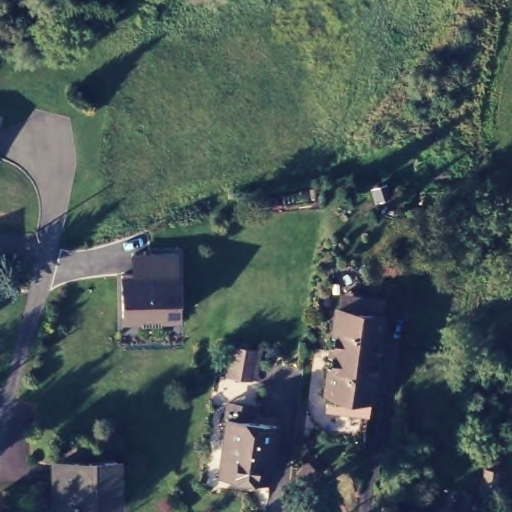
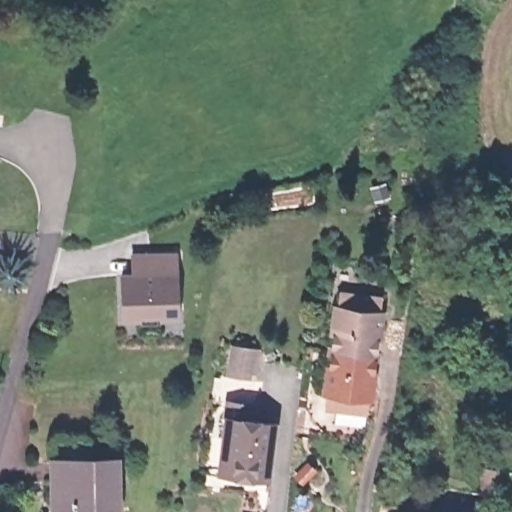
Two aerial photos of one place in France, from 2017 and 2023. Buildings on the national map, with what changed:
unchanged [(117,271),(128,271),(127,253),(175,254),(177,322),(117,321),(117,271)]
unchanged [(333,345),(337,301),(340,288),(351,290),(381,295),(381,301),(375,350),(333,345)]
unchanged [(231,376),(236,344),(261,348),(256,380),(231,376)]
unchanged [(327,389),(333,345),(375,350),(367,407),(336,403),(325,402),(327,389)]
unchanged [(220,470),(223,441),(221,438),(221,432),(224,431),(226,413),(228,398),(252,400),(251,410),(260,411),(260,417),(276,419),(270,471),(269,476),(220,470)]
unchanged [(105,502),(61,503),(60,456),(121,454),(122,495),(122,502),(105,502)]
unchanged [(388,503),(390,493),(396,494),(395,504),(406,506),(406,504),(460,512),(387,512),(388,503)]

